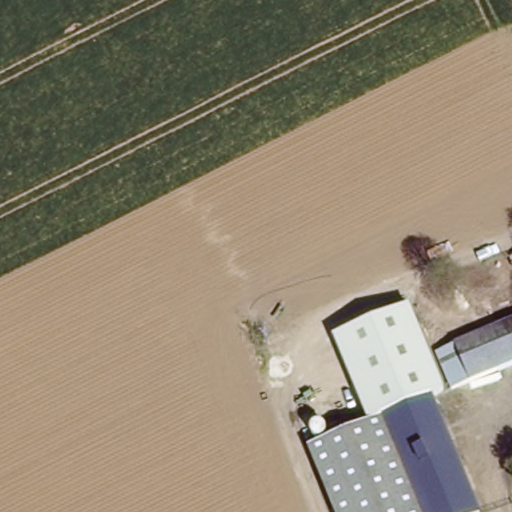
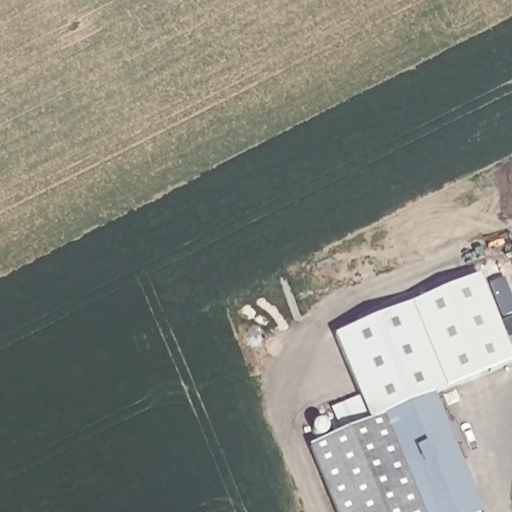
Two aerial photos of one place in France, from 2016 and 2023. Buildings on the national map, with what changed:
new [(512,362),(447,391),(411,307),(479,277),(499,325),(512,362)]
new [(503,322),(489,285),(504,280),(512,301),(512,362),(499,325),(503,322)]
unchanged [(411,307),(447,391),(435,396),(433,390),(381,415),(369,420),(335,340),(411,307)]
demolished [(464,382),(447,345),(512,317),(512,362),(464,382)]
unchanged [(486,512),(334,512),(305,450),(354,428),(381,415),(433,390),(486,512)]

